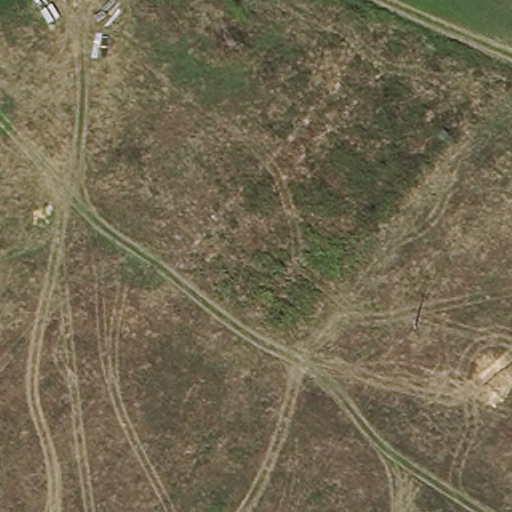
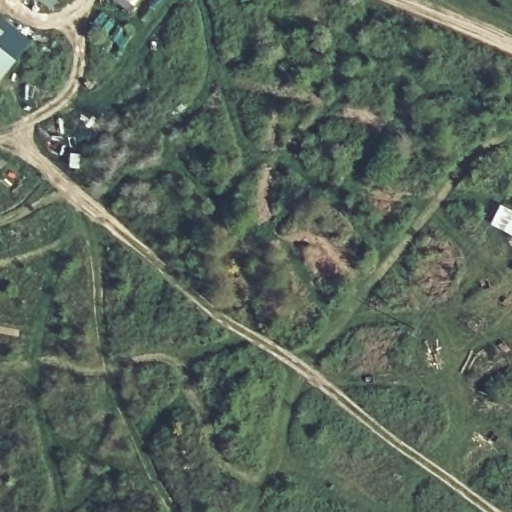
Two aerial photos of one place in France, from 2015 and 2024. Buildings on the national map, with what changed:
new [(52,10),(37,0),(59,0),(52,10)]
new [(132,11),(115,0),(141,0),(132,11)]
new [(0,80),(0,14),(33,40),(0,80)]

